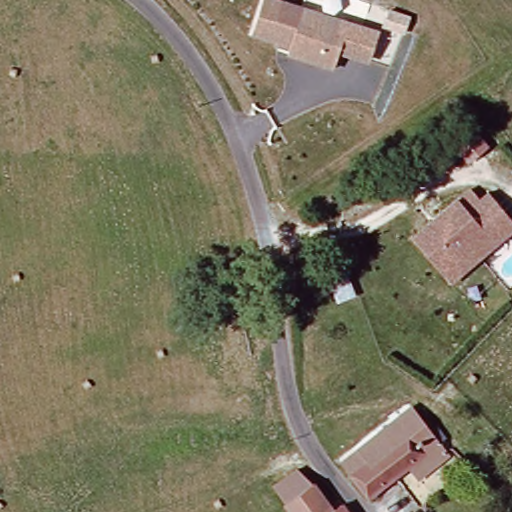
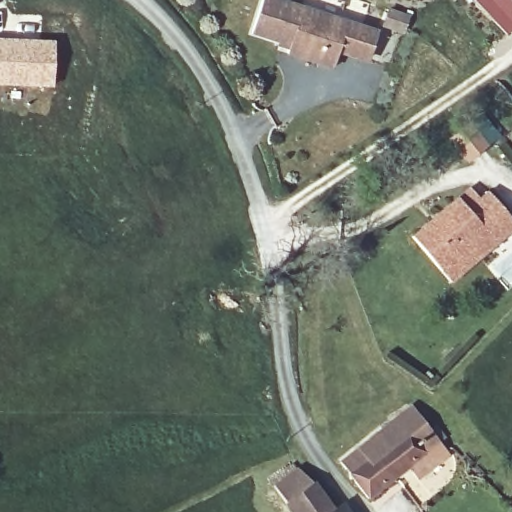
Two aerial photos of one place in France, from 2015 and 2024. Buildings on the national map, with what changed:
unchanged [(332,66),(287,49),(290,42),(252,27),(262,0),(291,0),(349,22),(377,32),(367,59),(339,49),(332,66)]
new [(506,35),(472,0),(512,0),(512,29),(506,35)]
new [(52,87),(0,84),(0,37),(55,40),(52,87)]
unchanged [(445,270),(414,237),(458,197),(468,207),(488,189),(512,214),(512,228),(497,241),(454,281),(445,270)]
unchanged [(423,430),(430,426),(433,422),(447,437),(443,441),(440,445),(448,456),(420,480),(410,469),(371,502),(340,468),(407,411),(423,430)]
unchanged [(274,489),(297,474),(331,512),(291,512),(274,489)]
unchanged [(347,510),(349,512),(343,512),(347,510)]

